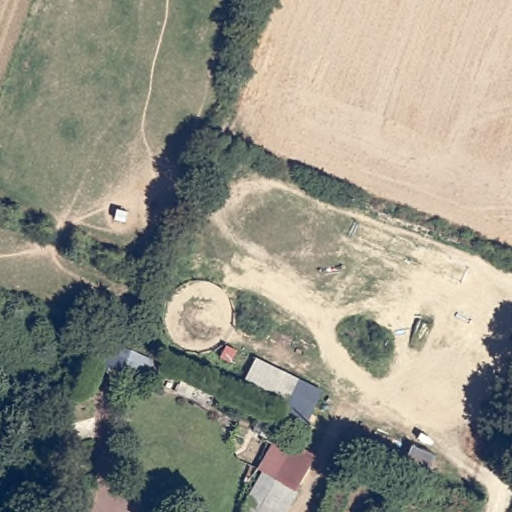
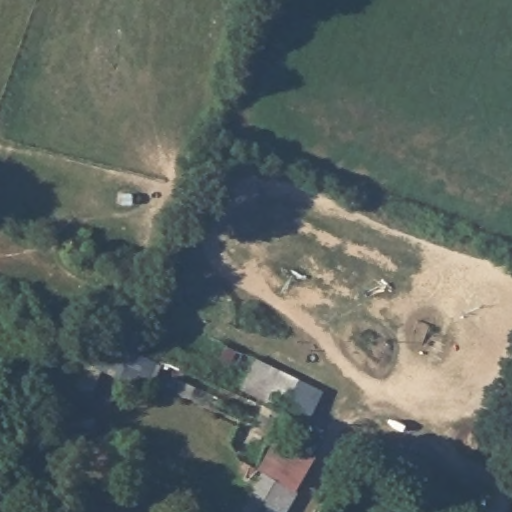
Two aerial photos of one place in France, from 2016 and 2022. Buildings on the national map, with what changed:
unchanged [(71,386),(95,332),(108,338),(153,359),(141,387),(119,377),(101,371),(91,393),(71,386)]
unchanged [(323,388),(309,422),(299,418),(292,433),(275,426),(283,412),(279,410),(246,394),(238,390),(255,357),(323,388)]
unchanged [(275,437),(314,455),(295,487),(284,512),(238,512),(256,472),(275,437)]

